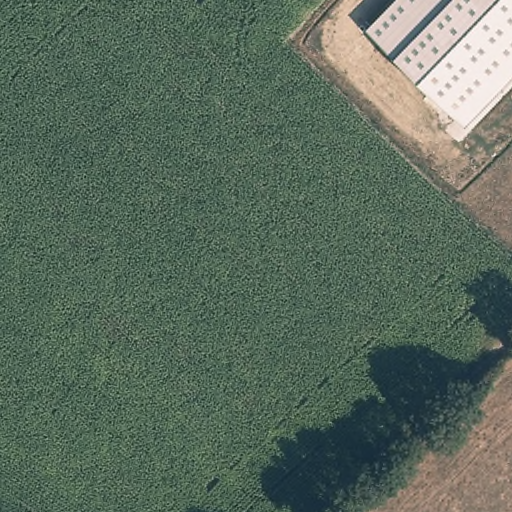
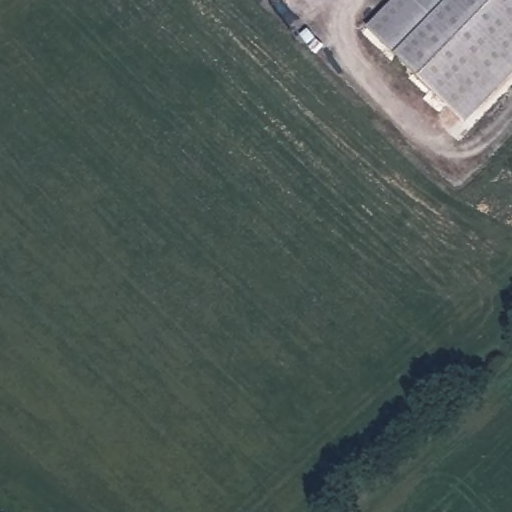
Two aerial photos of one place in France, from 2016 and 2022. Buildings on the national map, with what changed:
unchanged [(367,24),(391,0),(512,0),(512,76),(467,123),(367,24)]

